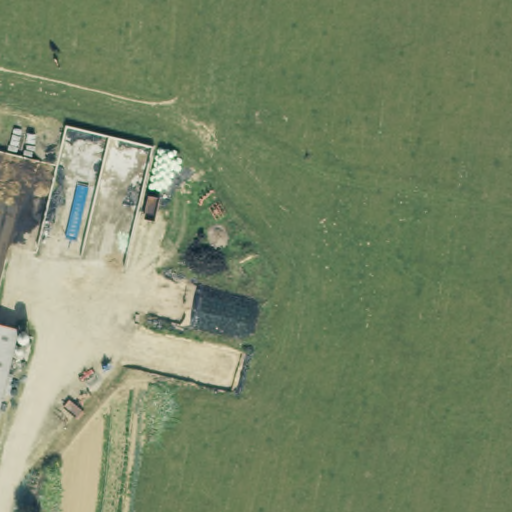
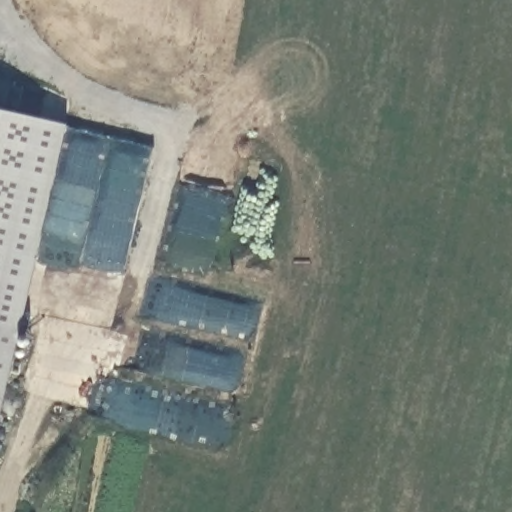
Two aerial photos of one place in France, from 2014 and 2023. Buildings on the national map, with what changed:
new [(20,330),(0,325),(0,108),(68,124),(20,330)]
unchanged [(20,330),(0,412),(0,325),(20,330)]

